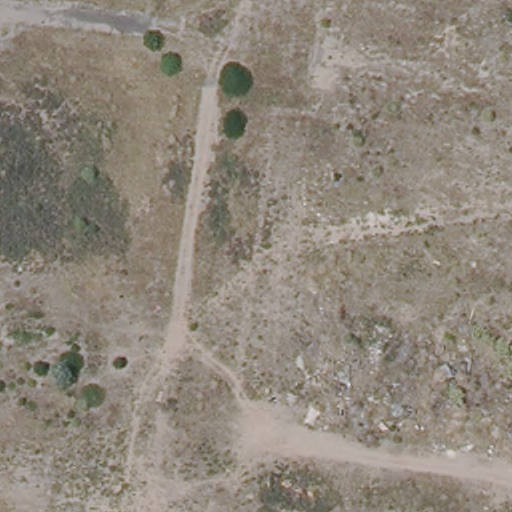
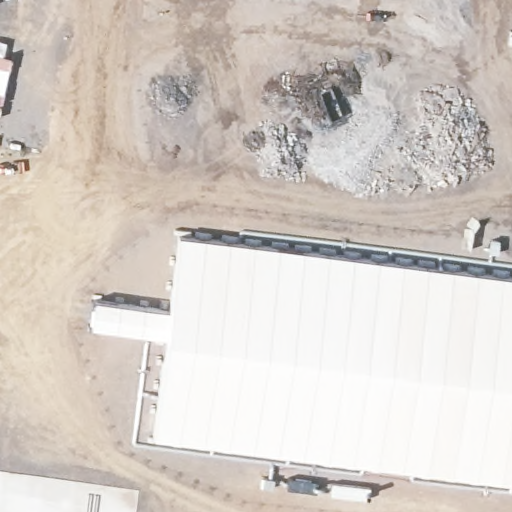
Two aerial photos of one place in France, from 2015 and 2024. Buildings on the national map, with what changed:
new [(7,42),(3,55),(12,57),(0,107),(0,41),(7,42)]
new [(168,308),(177,233),(233,240),(284,244),(285,239),(319,247),(320,244),(344,245),(431,253),(489,260),(512,263),(512,485),(457,476),(355,465),(228,448),(185,444),(150,438),(162,339),(150,336),(88,326),(92,298),(168,308)]

